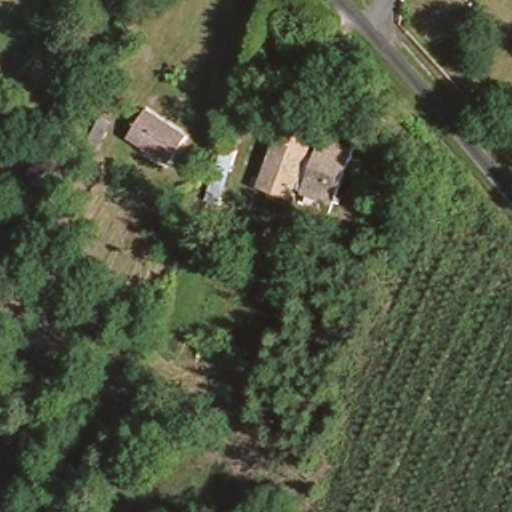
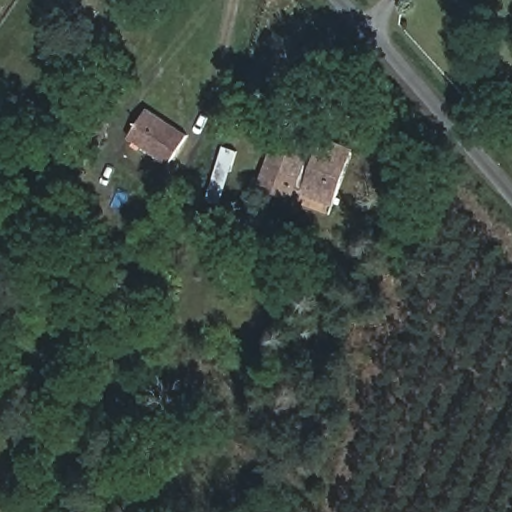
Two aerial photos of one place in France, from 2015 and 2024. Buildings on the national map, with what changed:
unchanged [(129,143),(141,111),(188,131),(176,162),(129,143)]
unchanged [(341,200),(327,195),(298,186),(294,197),(262,188),(283,123),(315,134),(310,150),(322,153),(325,139),(344,145),(356,150),(341,200)]
unchanged [(83,165),(92,136),(102,140),(93,169),(83,165)]
unchanged [(209,193),(223,142),(236,146),(222,197),(209,193)]

